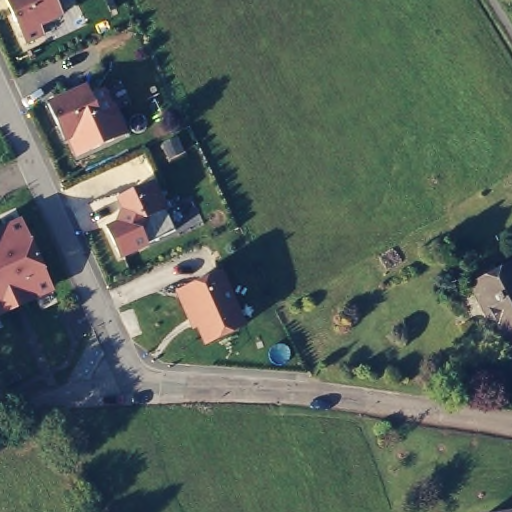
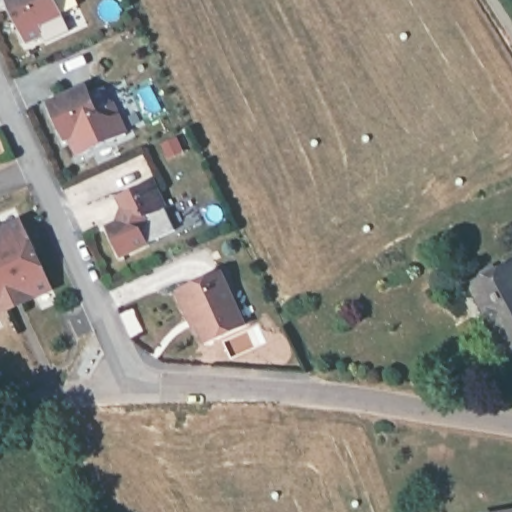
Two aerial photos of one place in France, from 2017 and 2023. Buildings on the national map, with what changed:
unchanged [(39,26),(44,36),(25,45),(5,0),(54,0),(62,16),(39,26)]
unchanged [(104,124),(62,142),(43,102),(84,84),(104,124)]
unchanged [(175,230),(119,256),(103,225),(115,220),(117,206),(114,200),(152,180),(175,230)]
unchanged [(0,315),(0,228),(19,220),(54,290),(0,315)]
unchanged [(482,286),(478,277),(498,267),(502,275),(512,271),(512,347),(480,287),(482,286)]
unchanged [(245,328),(203,345),(196,329),(191,331),(173,291),(220,270),(245,328)]
unchanged [(512,510),(512,512),(498,512),(512,510)]

